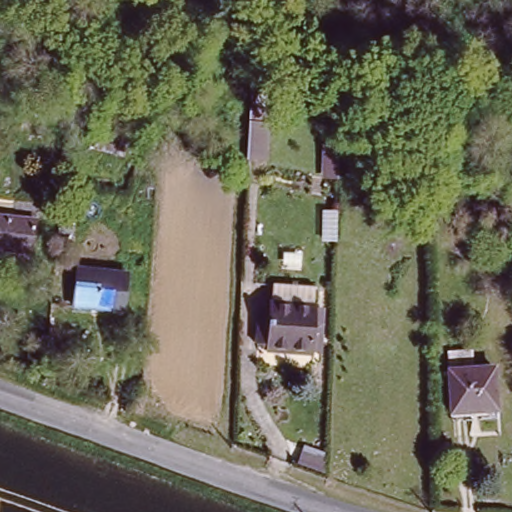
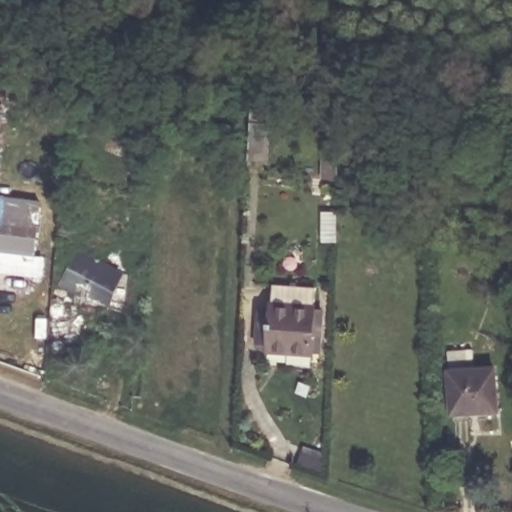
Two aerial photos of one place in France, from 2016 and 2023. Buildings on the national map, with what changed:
unchanged [(32,250),(0,248),(0,217),(34,219),(32,250)]
unchanged [(78,274),(123,272),(124,305),(79,306),(78,274)]
unchanged [(313,355),(271,355),(271,295),(271,289),(312,289),(312,308),(313,355)]
unchanged [(454,374),(494,373),(495,412),(455,413),(454,374)]

